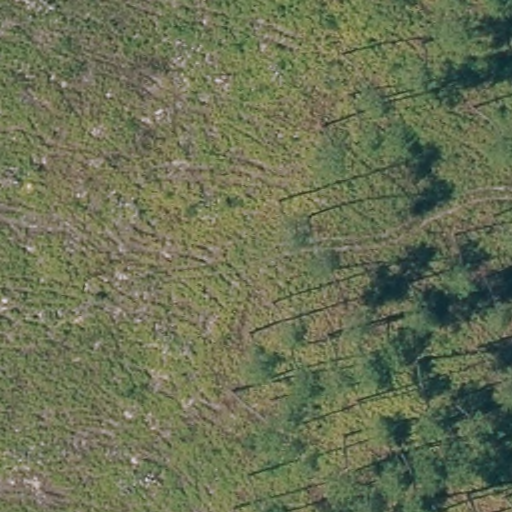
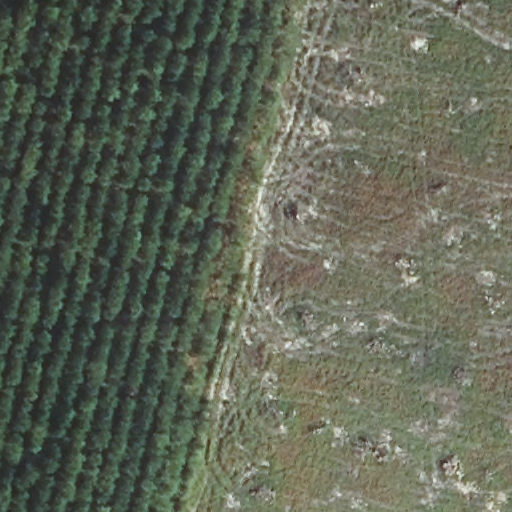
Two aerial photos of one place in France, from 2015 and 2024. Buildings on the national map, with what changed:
[]

